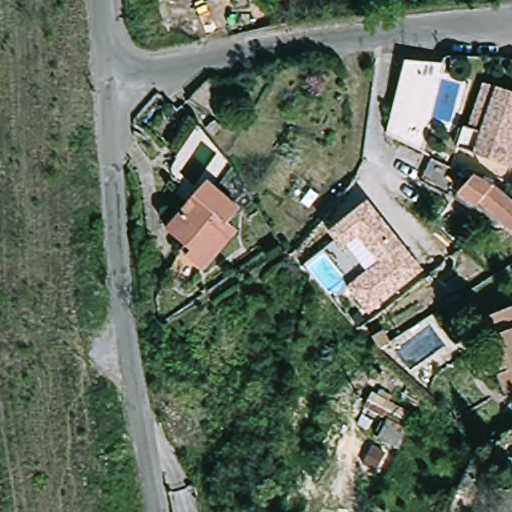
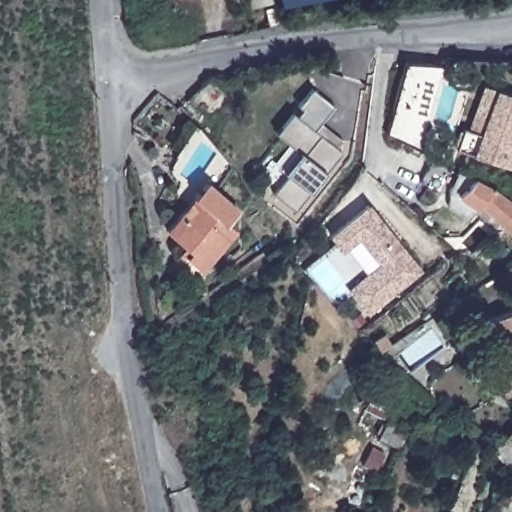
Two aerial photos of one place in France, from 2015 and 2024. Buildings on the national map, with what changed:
unchanged [(275,4),(253,10),(250,0),(274,0),(275,4)]
unchanged [(280,1),(280,0),(284,0),(280,1)]
unchanged [(417,148),(382,135),(410,65),(449,67),(417,148)]
unchanged [(190,102),(210,82),(236,100),(212,118),(190,102)]
new [(286,175),(283,173),(279,169),(295,149),(275,133),(292,114),(296,117),(302,109),(298,106),(312,89),(335,108),(322,123),(344,142),(337,150),(343,155),(325,175),(310,194),(296,212),(274,194),(286,175)]
unchanged [(462,152),(469,132),(473,134),(490,89),(505,95),(512,97),(512,170),(462,152)]
unchanged [(511,232),(477,208),(473,212),(452,191),(450,197),(439,190),(423,183),(432,161),(455,170),(475,179),(495,191),(512,206),(512,233),(511,232)]
unchanged [(242,214),(231,228),(241,235),(208,276),(192,263),(197,257),(171,237),(210,188),(242,214)]
unchanged [(424,272),(367,315),(348,288),(365,273),(345,246),(341,250),(329,235),(368,204),(424,272)]
unchanged [(512,316),(512,398),(510,399),(484,327),(512,316)]
unchanged [(366,411),(374,397),(377,399),(380,393),(392,399),(389,406),(409,418),(402,430),(408,433),(398,452),(378,441),(387,422),(366,411)]

